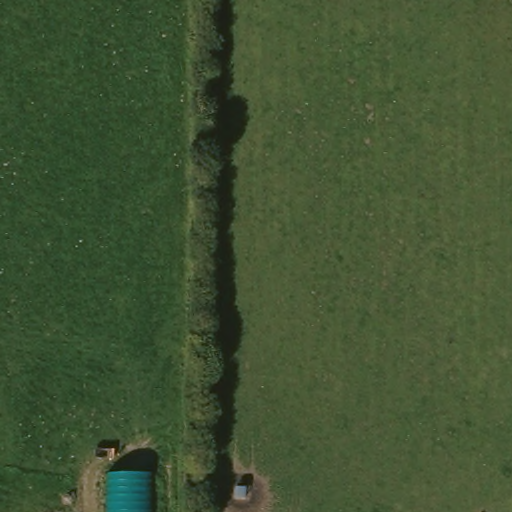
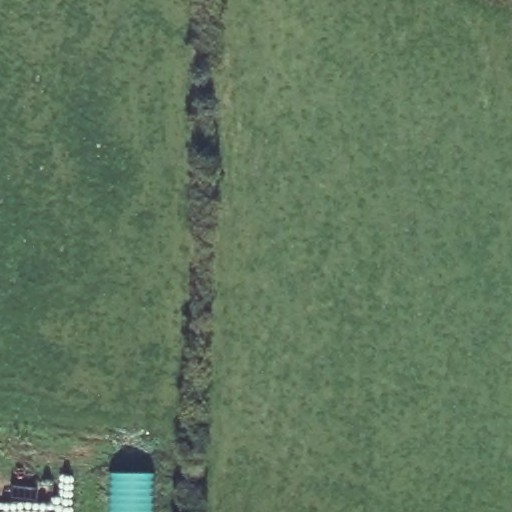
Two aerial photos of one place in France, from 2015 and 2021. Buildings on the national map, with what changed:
unchanged [(108,512),(108,472),(155,473),(155,512),(108,512)]

